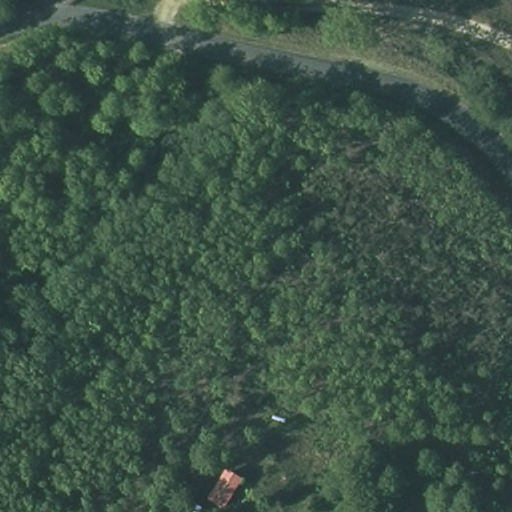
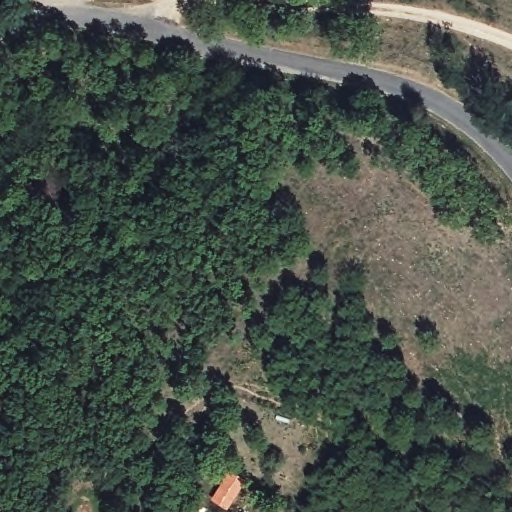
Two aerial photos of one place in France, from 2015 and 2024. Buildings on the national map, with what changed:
unchanged [(212,500),(232,467),(250,479),(229,511),(212,500)]

